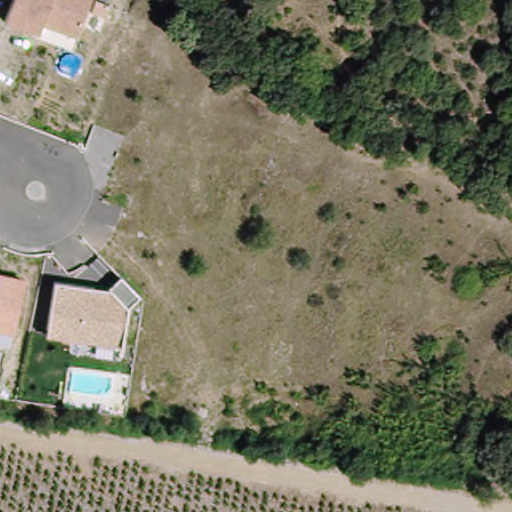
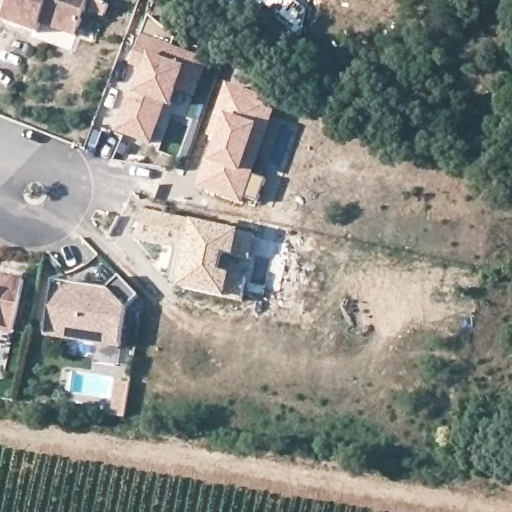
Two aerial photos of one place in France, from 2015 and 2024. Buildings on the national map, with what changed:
unchanged [(91,0),(76,38),(46,26),(41,37),(5,21),(13,0),(91,0)]
new [(131,91),(136,95),(145,73),(131,68),(143,36),(150,17),(177,40),(173,48),(209,61),(196,99),(178,91),(172,110),(165,108),(152,148),(114,134),(131,91)]
new [(214,141),(208,139),(229,82),(280,102),(254,174),(266,179),(257,203),(245,199),(243,205),(195,189),(214,141)]
new [(145,211),(241,232),(235,259),(227,257),(223,272),(232,275),(227,298),(193,292),(170,284),(177,250),(138,241),(145,211)]
unchanged [(14,335),(0,332),(0,275),(24,280),(14,335)]
unchanged [(54,283),(107,291),(121,279),(140,297),(127,310),(121,347),(46,336),(54,283)]

